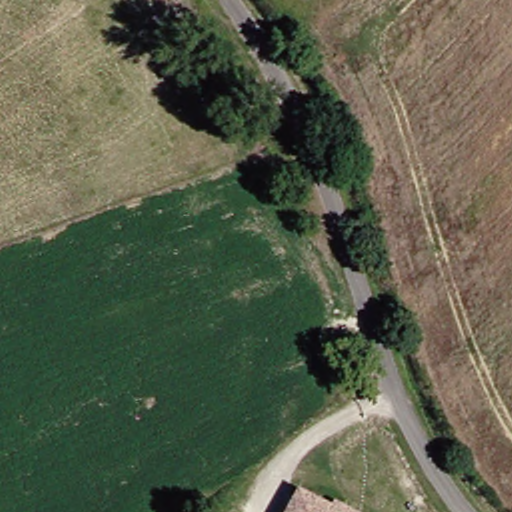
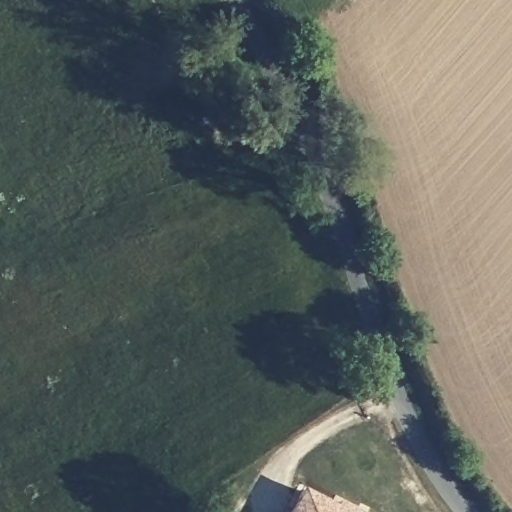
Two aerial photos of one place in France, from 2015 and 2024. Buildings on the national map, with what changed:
unchanged [(335,506),(338,501),(363,512),(292,512),(302,489),(335,506)]

